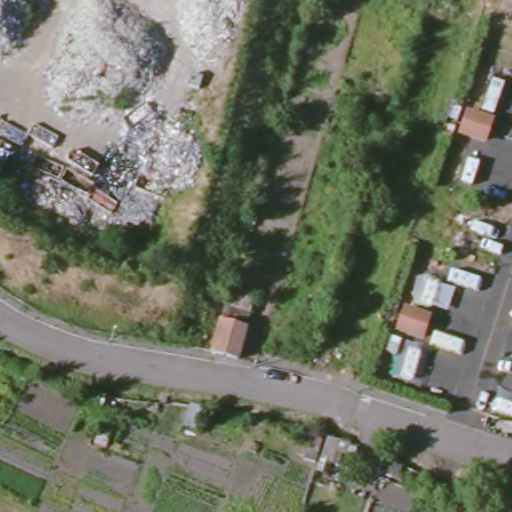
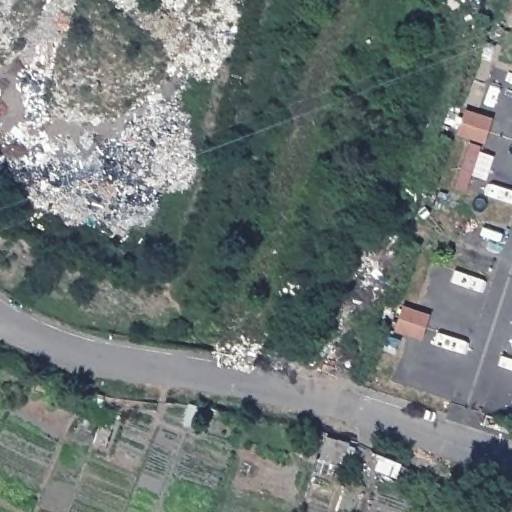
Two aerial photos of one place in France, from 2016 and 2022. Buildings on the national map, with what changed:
unchanged [(495,118),(487,145),(459,136),(467,109),(495,118)]
unchanged [(257,293),(239,362),(208,353),(230,284),(257,293)]
unchanged [(433,314),(424,341),(397,332),(405,305),(433,314)]

